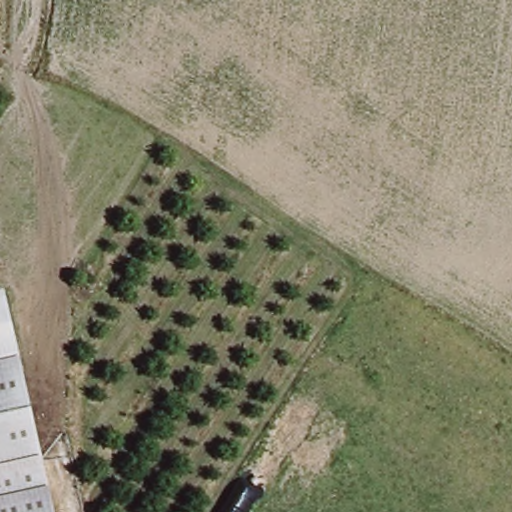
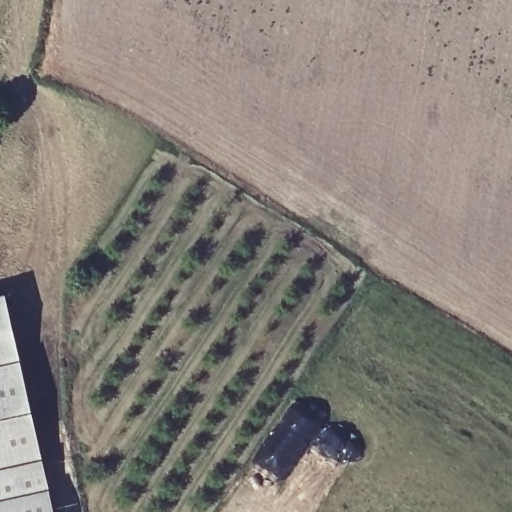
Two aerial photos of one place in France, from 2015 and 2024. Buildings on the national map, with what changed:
unchanged [(0,512),(0,304),(52,512),(0,512)]

